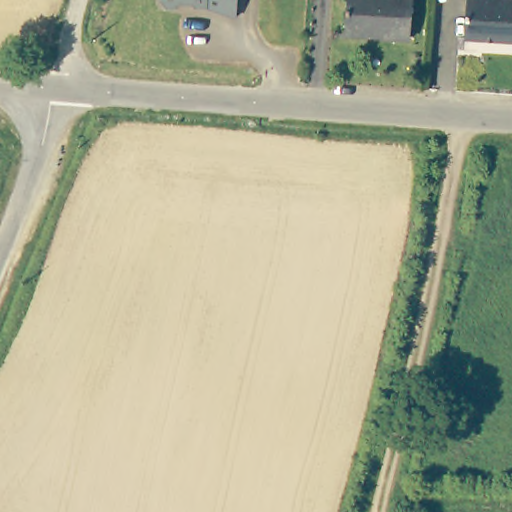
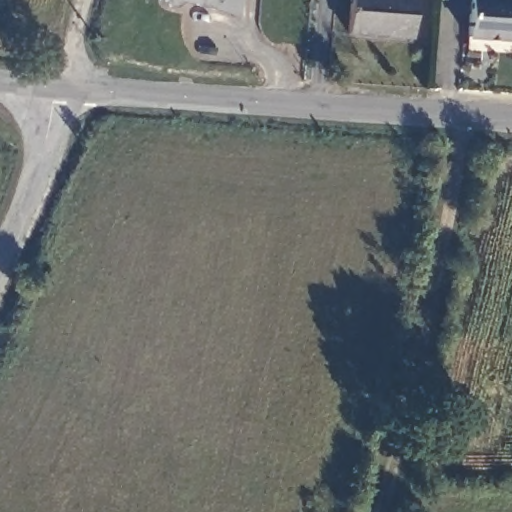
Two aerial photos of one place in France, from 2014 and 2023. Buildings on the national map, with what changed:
unchanged [(197,5),(180,3),(176,8),(166,7),(161,3),(161,0),(238,0),(237,18),(197,5)]
unchanged [(346,32),(349,0),(413,0),(411,37),(346,32)]
unchanged [(469,0),(512,0),(512,40),(466,36),(469,0)]

